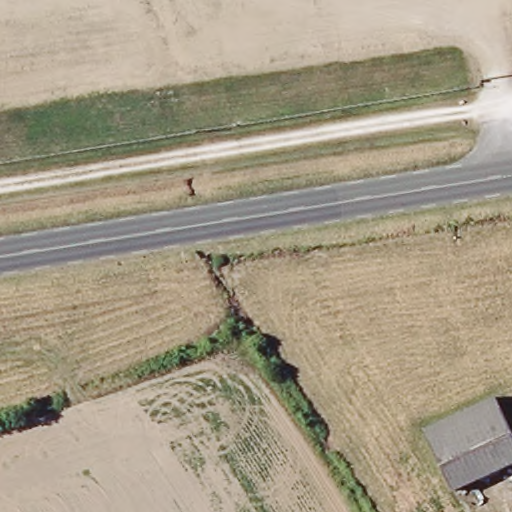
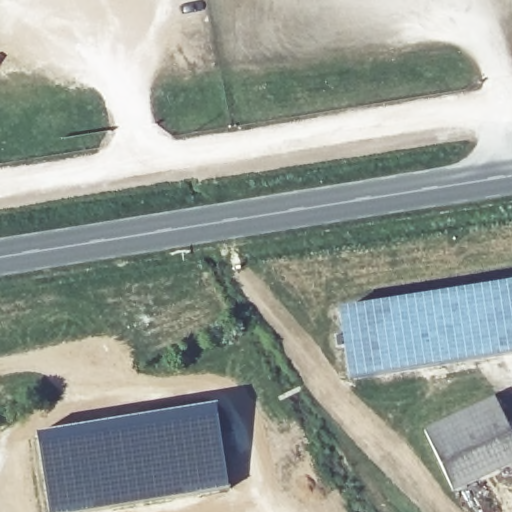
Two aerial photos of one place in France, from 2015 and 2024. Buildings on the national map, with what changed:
new [(512,352),(354,375),(344,308),(512,284),(512,352)]
unchanged [(512,427),(512,469),(460,496),(430,438),(499,403),(512,427)]
new [(230,489),(98,511),(91,512),(49,512),(35,433),(217,404),(230,489)]

